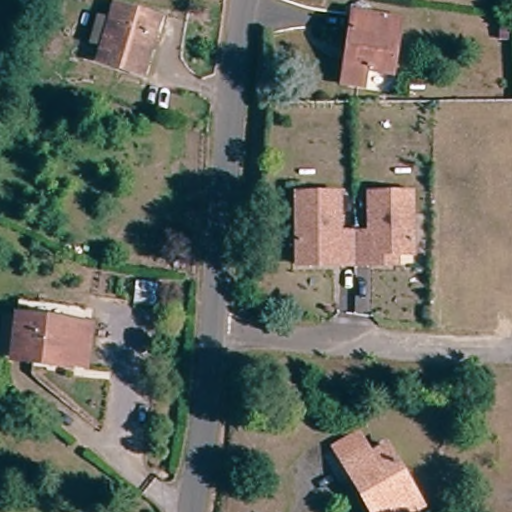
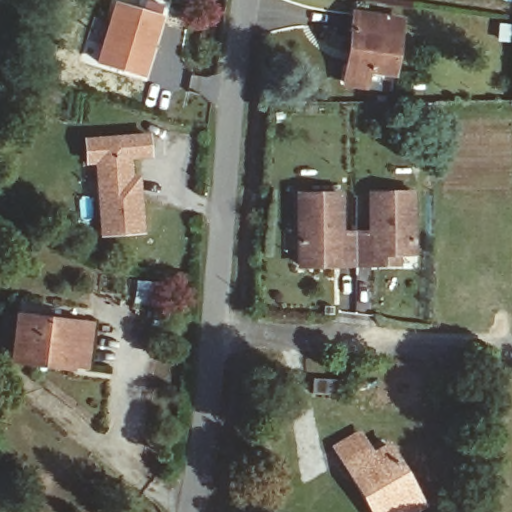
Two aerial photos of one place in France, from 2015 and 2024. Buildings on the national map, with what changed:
unchanged [(108,42),(94,38),(102,14),(116,17),(121,0),(128,0),(165,11),(147,69),(104,55),(108,42)]
unchanged [(361,8),(408,18),(397,72),(368,66),(365,81),(345,77),(348,62),(356,30),(361,8)]
new [(100,236),(95,165),(86,166),(84,138),(151,135),(152,159),(132,160),(133,176),(142,176),(146,232),(100,236)]
unchanged [(372,263),(340,262),(298,260),(299,250),(302,188),(345,190),(342,230),(373,231),(376,192),(417,195),(414,256),(398,255),(398,265),(372,263)]
unchanged [(91,367),(77,366),(17,361),(22,317),(80,322),(95,323),(91,367)]
unchanged [(375,510),(355,476),(345,461),(337,447),(364,430),(372,444),(377,450),(393,440),(430,500),(412,510),(410,512),(377,512),(375,510)]

